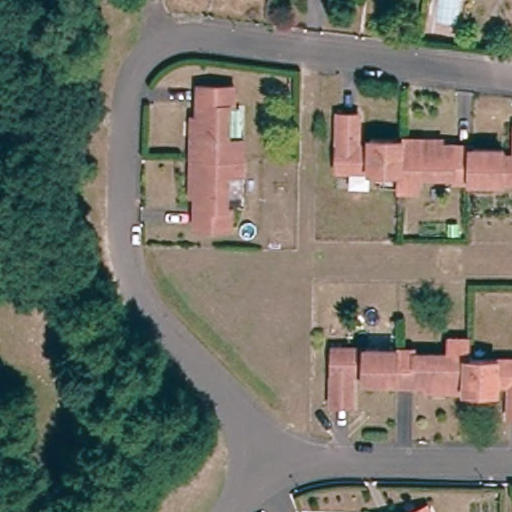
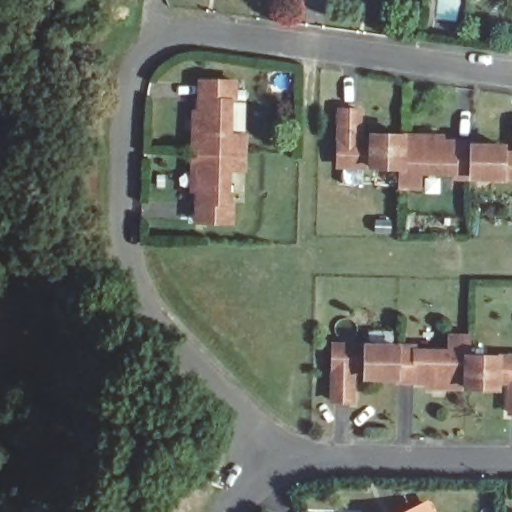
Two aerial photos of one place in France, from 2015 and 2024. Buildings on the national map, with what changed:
unchanged [(236,84),(235,106),(230,105),(229,136),(246,137),(244,176),(228,176),(227,206),(234,206),(233,228),(196,227),(197,195),(188,195),(191,116),(198,116),(199,84),(236,84)]
unchanged [(355,144),(374,145),(374,137),(440,139),(440,145),(470,146),(470,153),(502,153),(501,158),(512,158),(512,186),(448,184),(449,176),(417,176),(416,192),(397,192),(398,175),(334,172),(335,117),(355,118),(355,144)]
unchanged [(420,359),(452,359),(452,341),(473,341),(473,361),(512,362),(512,388),(499,387),(499,395),(432,393),(431,389),(400,388),(399,383),(371,383),(371,378),(354,377),(354,406),(335,405),(337,350),(419,352),(420,359)]
unchanged [(430,512),(426,512),(430,510),(430,512)]

